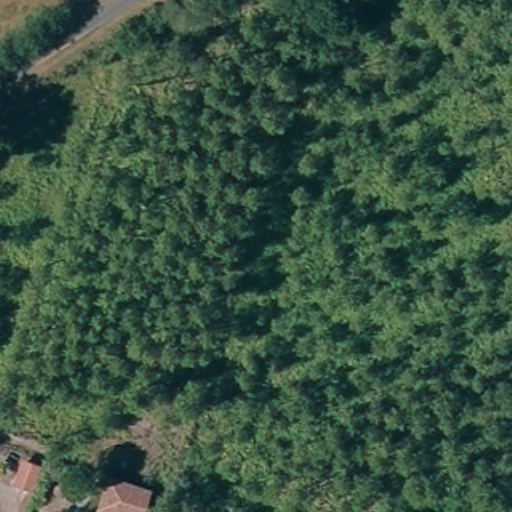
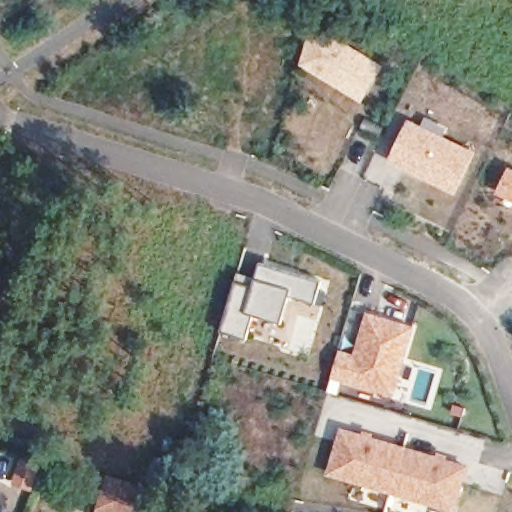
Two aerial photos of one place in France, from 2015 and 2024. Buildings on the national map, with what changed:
new [(299,64),(313,23),(384,65),(362,101),(299,64)]
new [(390,157),(410,119),(476,151),(456,193),(390,157)]
new [(510,166),(512,168),(512,199),(497,192),(510,166)]
new [(247,336),(222,328),(236,280),(254,285),(260,263),(321,279),(315,300),(291,293),(282,321),(254,312),(247,336)]
new [(332,376),(341,348),(355,352),(367,311),(415,326),(394,395),(332,376)]
new [(328,474),(342,427),(467,464),(456,511),(328,474)]
unchanged [(30,496),(38,472),(52,477),(44,501),(30,496)]
unchanged [(110,482),(150,496),(145,512),(101,512),(110,482)]

